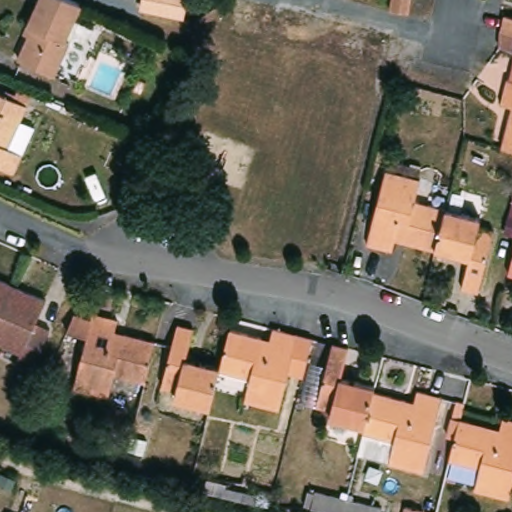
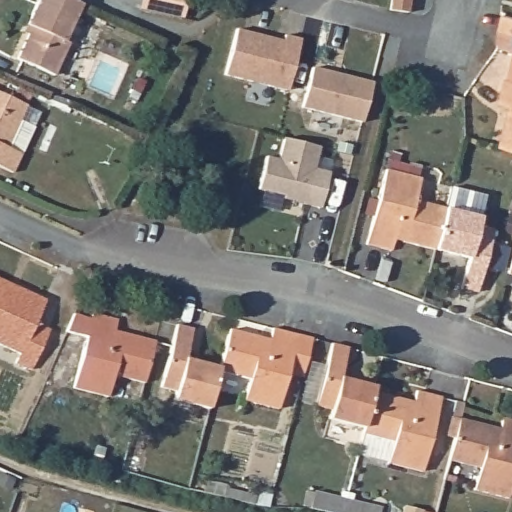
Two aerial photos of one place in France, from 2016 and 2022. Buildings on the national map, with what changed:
unchanged [(70,41),(55,74),(19,59),(31,33),(26,31),(29,24),(40,0),(71,0),(81,4),(66,40),(70,41)]
new [(185,0),(181,18),(142,10),(144,0),(185,0)]
unchanged [(404,0),(403,6),(385,4),(386,0),(404,0)]
unchanged [(497,47),(498,29),(501,16),(512,19),(512,52),(497,47)]
new [(236,29),(283,41),(284,35),(301,39),(288,91),(225,75),(236,29)]
new [(315,61),(375,76),(365,115),(305,100),(315,61)]
unchanged [(499,147),(509,106),(498,104),(504,79),(508,80),(512,64),(512,150),(499,147)]
unchanged [(15,121),(28,127),(16,155),(8,174),(0,170),(0,98),(21,107),(15,121)]
new [(260,182),(269,149),(281,152),(287,131),(322,140),(317,161),(332,165),(323,201),(306,197),(285,191),(286,189),(260,182)]
unchanged [(392,242),(389,253),(365,247),(383,174),(417,182),(412,204),(443,211),(433,252),(392,242)]
unchanged [(443,211),(479,219),(477,229),(491,232),(476,293),(461,289),(468,261),(433,252),(443,211)]
unchanged [(28,370),(13,364),(17,354),(0,346),(0,282),(43,301),(33,322),(48,328),(45,334),(28,370)]
unchanged [(74,317),(91,321),(92,315),(117,320),(115,332),(155,342),(145,382),(113,375),(108,396),(74,388),(86,339),(83,338),(71,394),(44,388),(74,317)]
unchanged [(172,403),(175,393),(160,390),(175,329),(190,333),(183,361),(219,371),(218,372),(209,412),(172,403)]
unchanged [(269,341),(272,330),(296,336),(312,340),(303,376),(287,372),(278,409),(244,401),(250,379),(218,372),(219,371),(229,331),(269,341)]
unchanged [(339,376),(375,385),(373,392),(372,393),(364,426),(328,418),(330,407),(316,404),(330,344),(346,348),(339,376)]
unchanged [(372,393),(373,392),(413,402),(415,392),(440,398),(422,471),(388,463),(357,455),(362,434),(364,426),(372,393)]
unchanged [(459,418),(498,428),(502,417),(512,420),(512,479),(507,497),(474,490),(479,467),(448,459),(459,418)]
unchanged [(374,503),(373,512),(329,512),(309,508),(312,493),(345,498),(374,503)]

